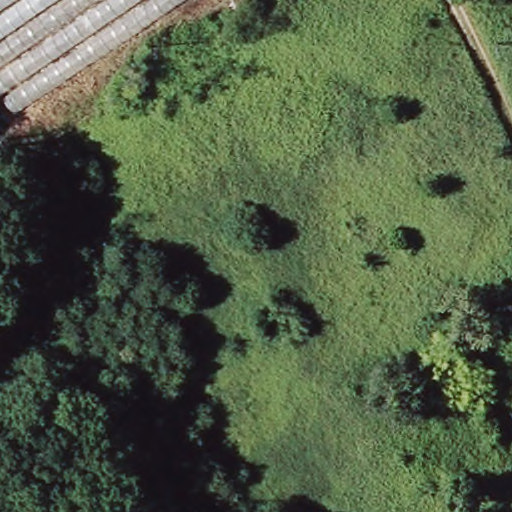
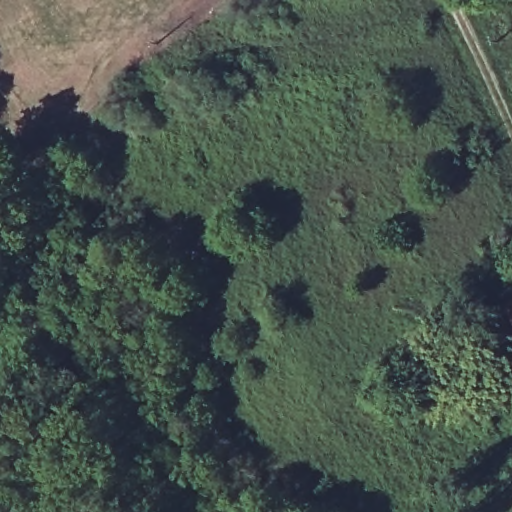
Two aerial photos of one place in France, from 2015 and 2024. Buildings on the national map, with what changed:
demolished [(0,103),(0,0),(181,0),(6,115),(0,103)]
unchanged [(505,312),(512,309),(512,329),(505,312)]

